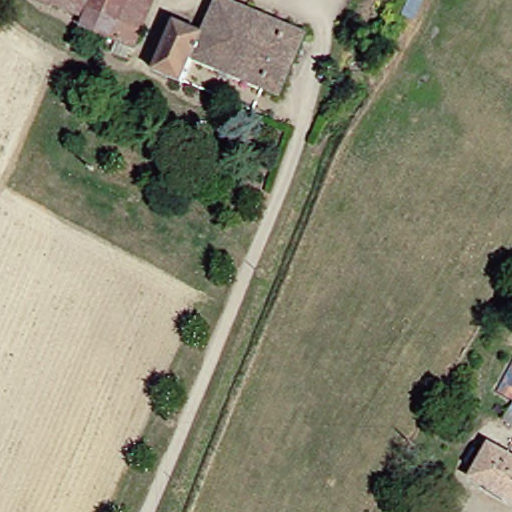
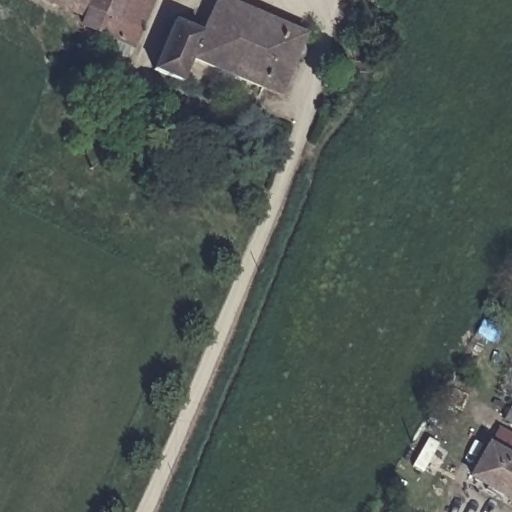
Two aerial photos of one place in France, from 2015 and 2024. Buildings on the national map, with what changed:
unchanged [(83,0),(76,15),(40,0),(83,0)]
unchanged [(73,24),(76,15),(83,0),(143,0),(124,45),(73,24)]
unchanged [(177,81),(150,69),(170,20),(199,32),(212,0),(225,0),(278,23),(252,86),(187,58),(177,81)]
unchanged [(301,32),(275,95),(252,86),(278,23),(301,32)]
unchanged [(480,445),(505,461),(512,451),(512,499),(508,505),(461,475),(480,445)]

